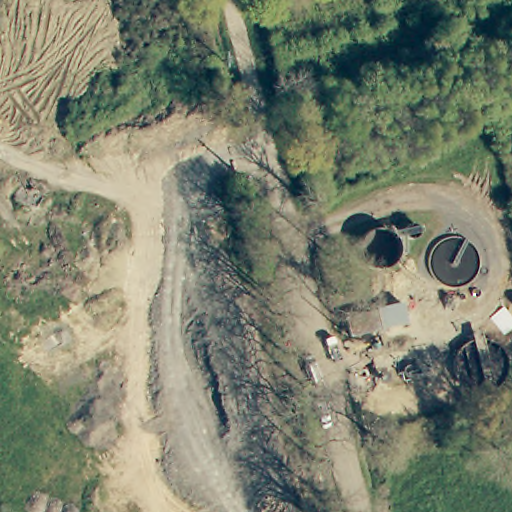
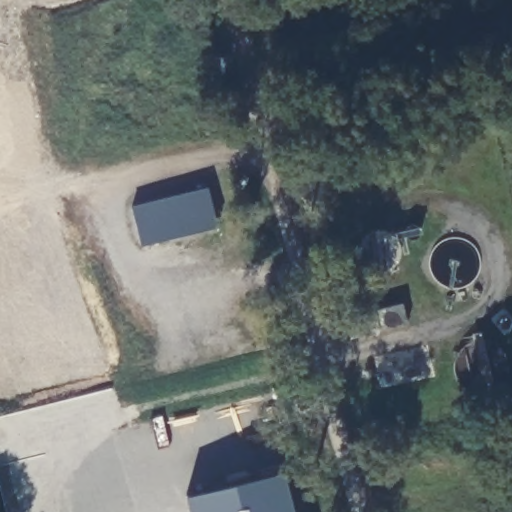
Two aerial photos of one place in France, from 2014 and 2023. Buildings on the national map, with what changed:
new [(207,187),(218,227),(140,246),(130,206),(207,187)]
unchanged [(379,332),(352,340),(347,321),(375,314),(379,332)]
new [(186,496),(284,472),(294,512),(190,512),(186,496)]

